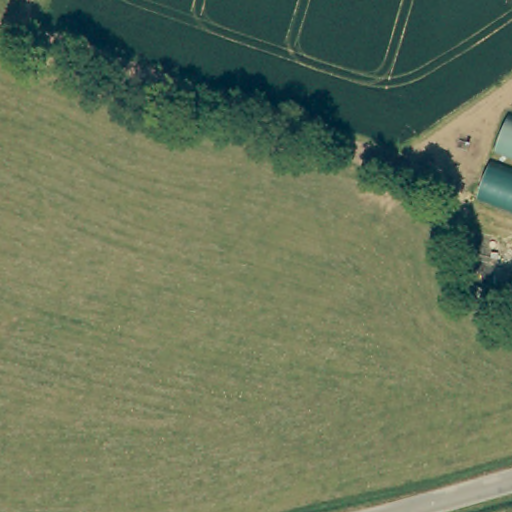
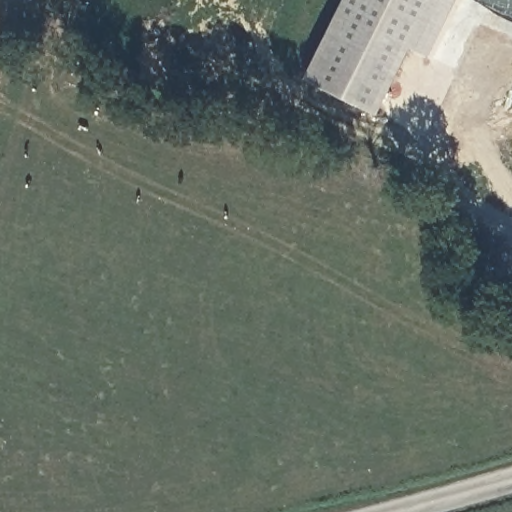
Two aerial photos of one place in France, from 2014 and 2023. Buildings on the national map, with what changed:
new [(415,50),(382,116),(308,81),(348,0),(459,0),(430,58),(415,50)]
unchanged [(512,117),(512,160),(493,153),(507,115),(512,117)]
unchanged [(476,201),(490,163),(512,171),(512,214),(476,201)]

